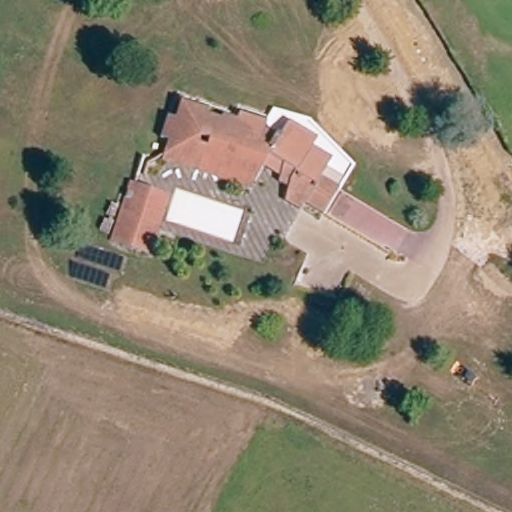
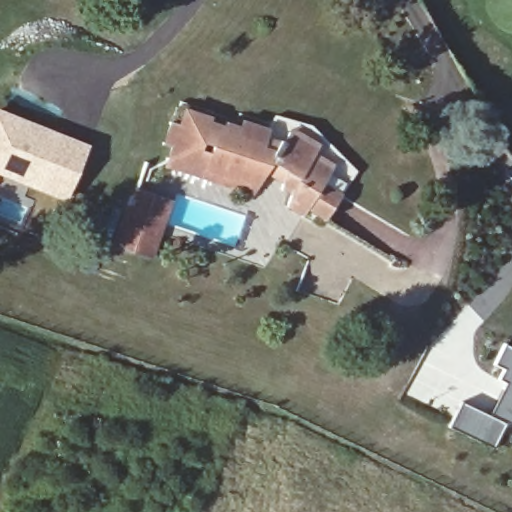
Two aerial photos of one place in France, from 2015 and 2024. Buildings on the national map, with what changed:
unchanged [(207,120),(222,125),(225,120),(236,125),(239,119),(267,126),(265,135),(281,141),(288,125),(316,140),(313,149),(331,161),(323,184),(342,193),(328,220),(307,210),(302,219),(284,210),(291,197),(279,192),(283,183),(266,175),(254,196),(164,167),(170,146),(159,144),(169,120),(175,124),(184,105),(210,115),(207,120)]
new [(66,202),(0,176),(0,109),(90,145),(66,202)]
unchanged [(152,259),(108,245),(130,185),(171,199),(152,259)]
unchanged [(501,387),(505,381),(497,378),(502,367),(492,363),(503,341),(512,346),(512,425),(505,421),(493,448),(476,440),(447,426),(460,400),(489,413),(501,387)]

